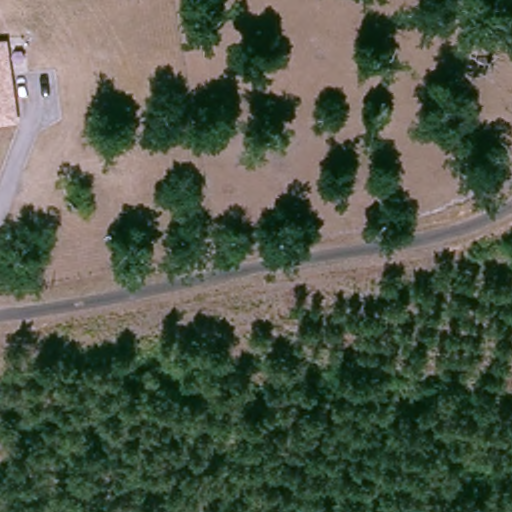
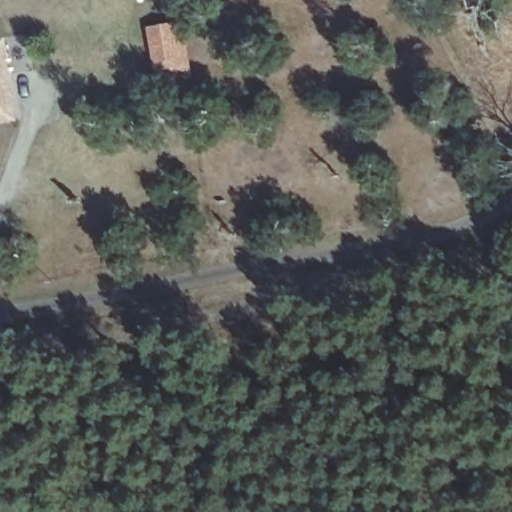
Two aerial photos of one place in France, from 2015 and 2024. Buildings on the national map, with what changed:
new [(156,67),(149,27),(185,21),(194,72),(170,76),(167,65),(156,67)]
unchanged [(7,127),(0,126),(0,46),(8,47),(7,127)]

